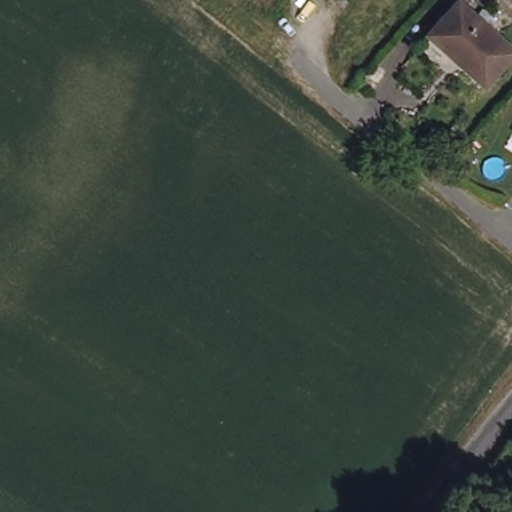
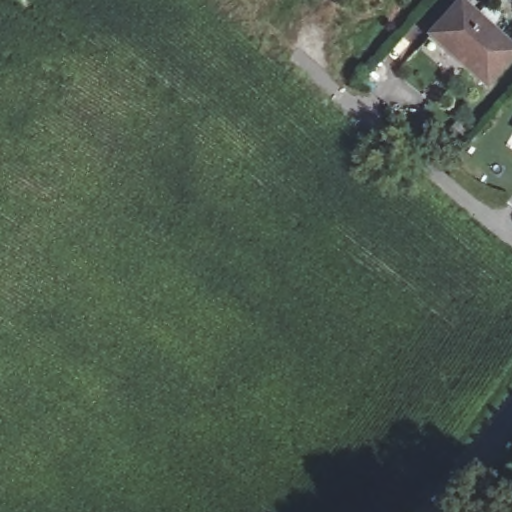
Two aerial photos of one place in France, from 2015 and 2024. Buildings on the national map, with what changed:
unchanged [(456,0),(511,48),(483,80),(458,57),(460,55),(457,51),(452,54),(427,31),(455,0),(456,0)]

